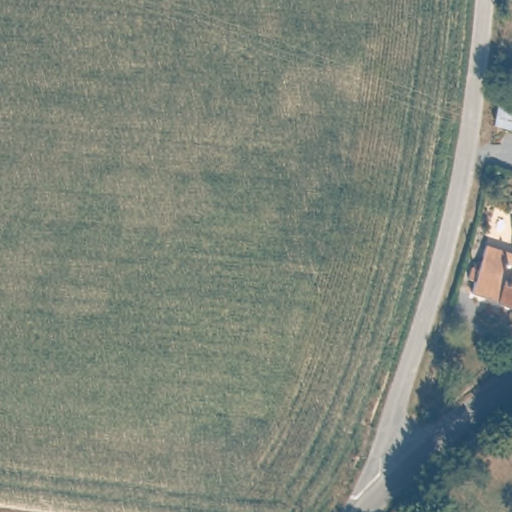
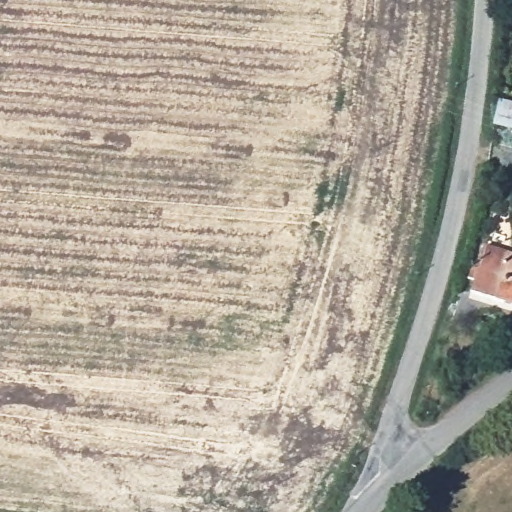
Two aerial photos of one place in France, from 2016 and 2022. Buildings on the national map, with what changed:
unchanged [(500,96),(512,99),(512,128),(495,122),(500,96)]
unchanged [(490,242),(512,250),(512,276),(481,265),(490,242)]
unchanged [(476,274),(471,272),(474,263),(481,265),(512,276),(512,299),(473,286),(476,274)]
unchanged [(394,511),(397,512),(392,512),(394,511)]

